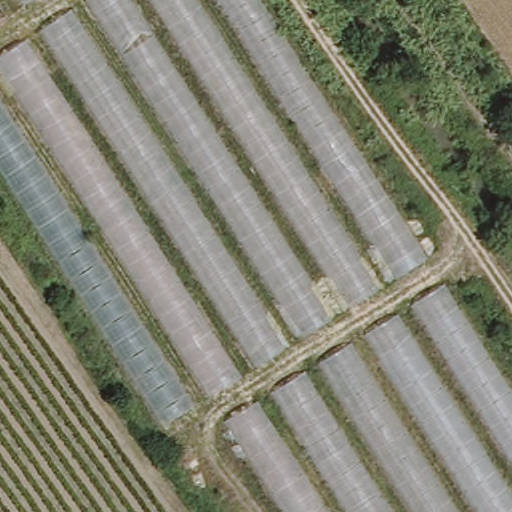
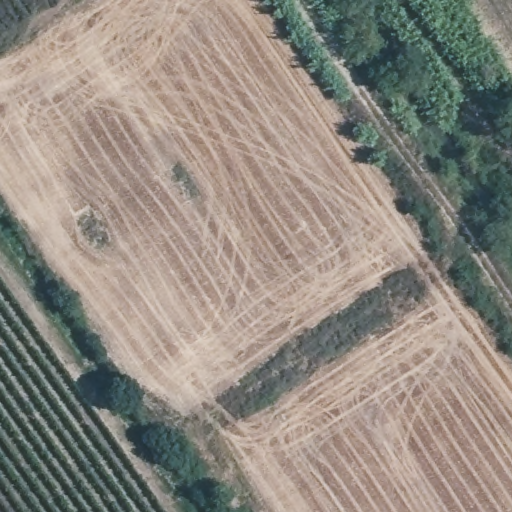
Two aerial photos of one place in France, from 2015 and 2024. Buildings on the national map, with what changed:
demolished [(35,0),(0,24),(0,0),(35,0)]
demolished [(165,427),(0,171),(0,57),(88,0),(264,0),(428,261),(165,427)]
demolished [(512,512),(280,512),(223,421),(443,283),(512,393),(512,512)]

